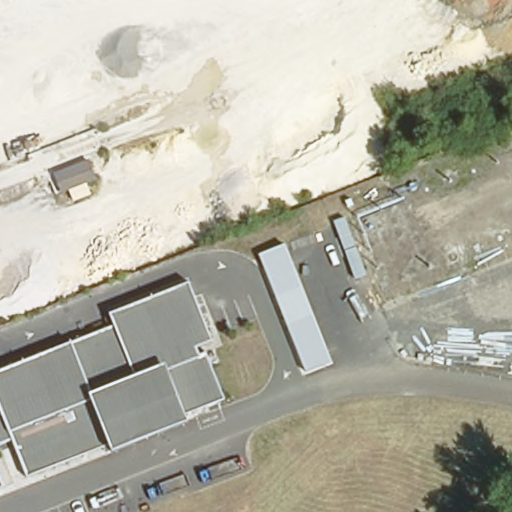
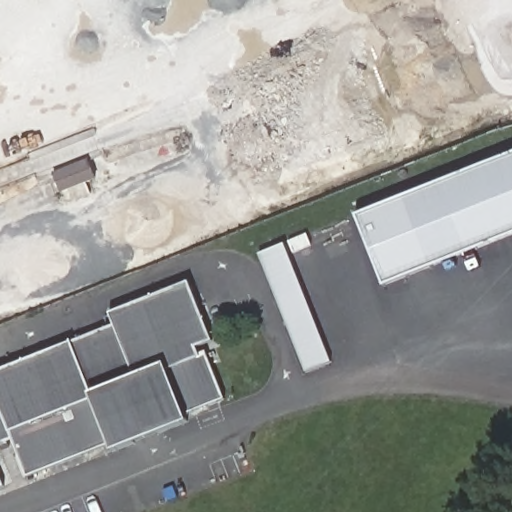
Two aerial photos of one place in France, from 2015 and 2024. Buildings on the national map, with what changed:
new [(384,287),(356,215),(512,153),(512,236),(384,287)]
unchanged [(51,171),(57,169),(92,155),(98,172),(64,185),(57,187),(51,171)]
new [(306,374),(257,255),(285,244),(332,363),(306,374)]
unchanged [(200,359),(207,356),(224,397),(186,413),(189,423),(115,452),(112,445),(29,477),(15,439),(0,445),(0,370),(75,342),(117,325),(112,312),(190,283),(212,340),(196,347),(200,359)]
unchanged [(0,489),(0,474),(6,487),(0,489)]

